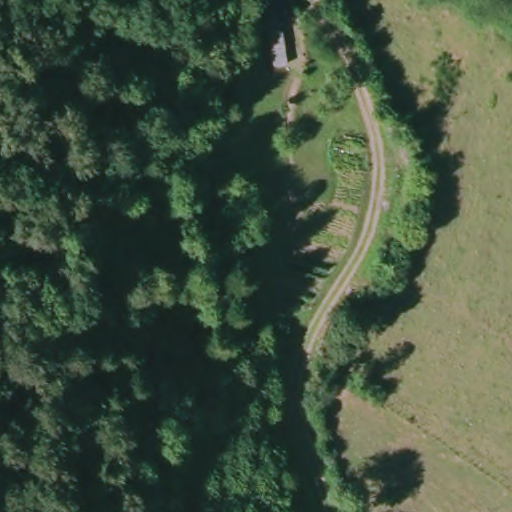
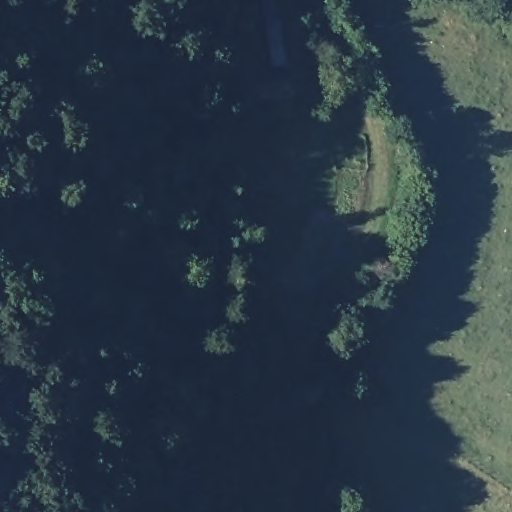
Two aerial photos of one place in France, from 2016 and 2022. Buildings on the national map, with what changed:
unchanged [(302,55),(302,70),(269,72),(262,6),(288,0),(295,0),(300,24),(285,25),(290,57),(302,55)]

